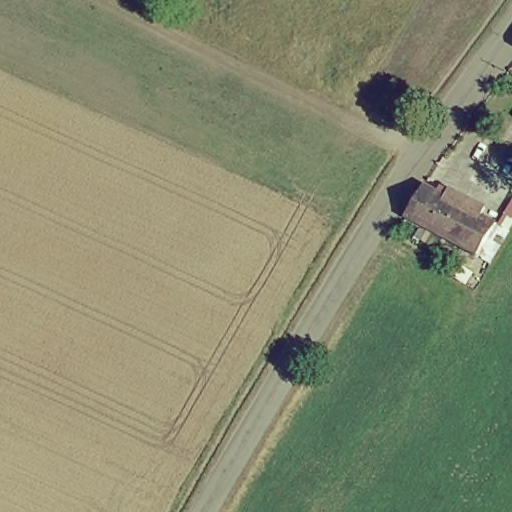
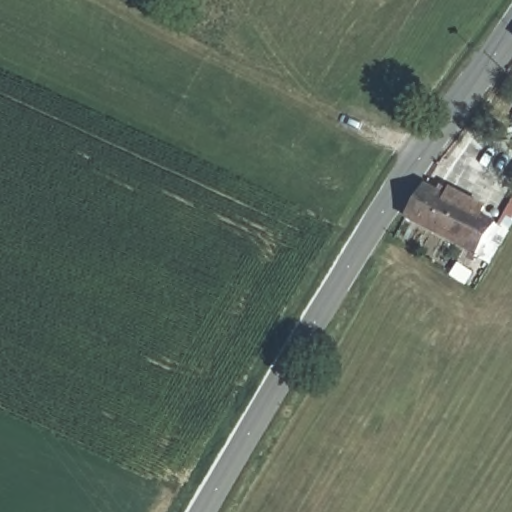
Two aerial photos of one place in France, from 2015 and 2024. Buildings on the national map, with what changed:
unchanged [(451,190),(487,212),(482,224),(493,231),(477,261),(404,219),(424,189),(443,201),(451,190)]

